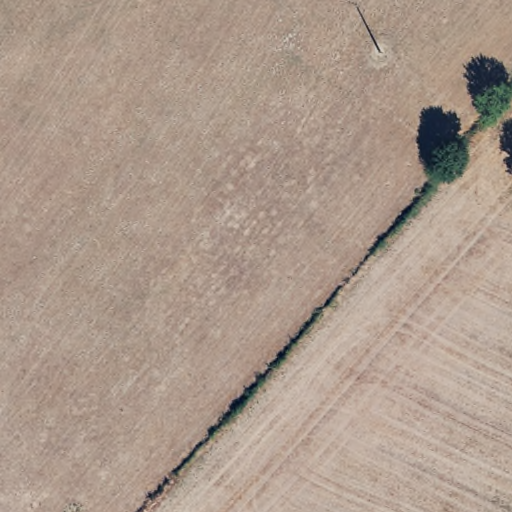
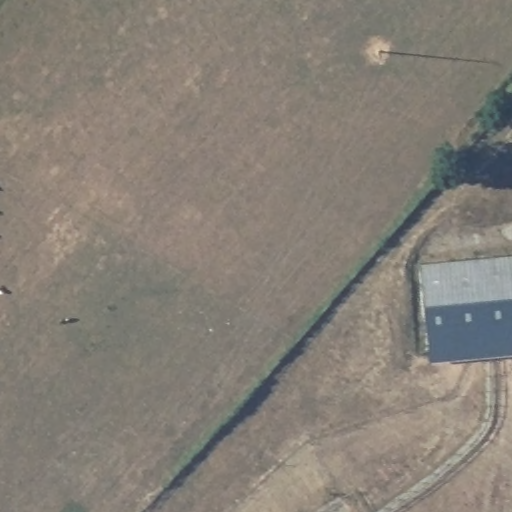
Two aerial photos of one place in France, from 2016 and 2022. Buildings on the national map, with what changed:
new [(512,253),(512,352),(429,360),(420,261),(512,253)]

